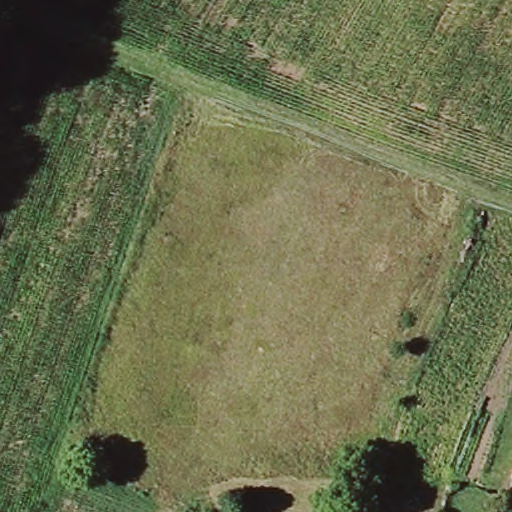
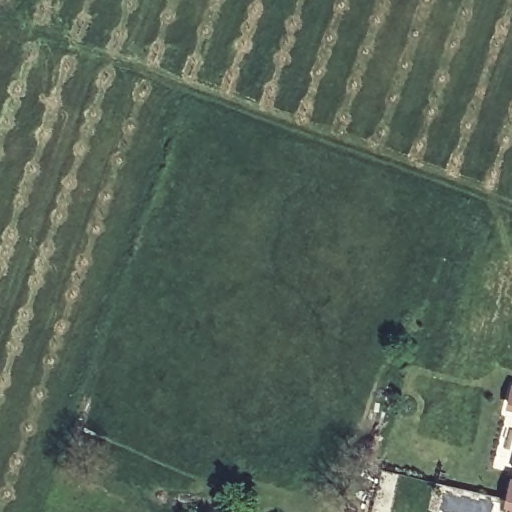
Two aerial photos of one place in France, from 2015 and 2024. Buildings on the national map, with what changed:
unchanged [(504,500),(512,469),(512,503),(504,500)]

